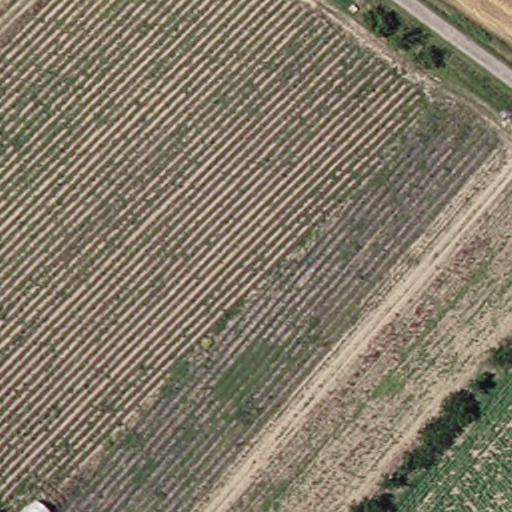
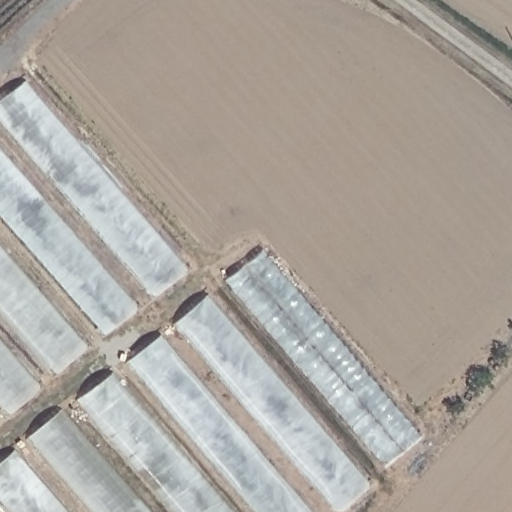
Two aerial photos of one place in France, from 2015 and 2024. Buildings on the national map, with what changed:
new [(0,100),(27,80),(187,267),(101,337),(0,215),(0,100)]
new [(0,425),(0,243),(90,348),(0,425)]
new [(424,439),(336,512),(170,512),(75,402),(266,251),(424,439)]
new [(0,502),(0,461),(62,409),(153,512),(9,512),(0,502)]

